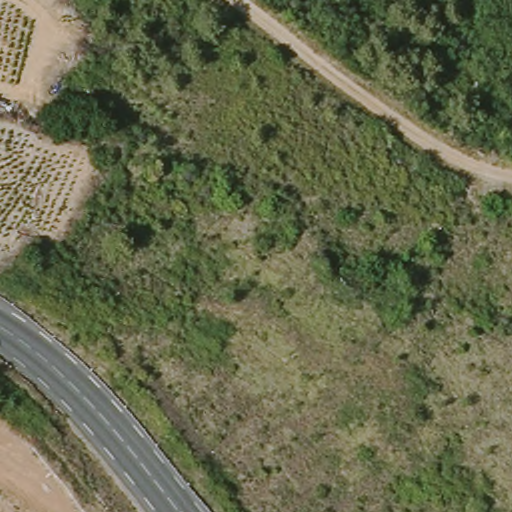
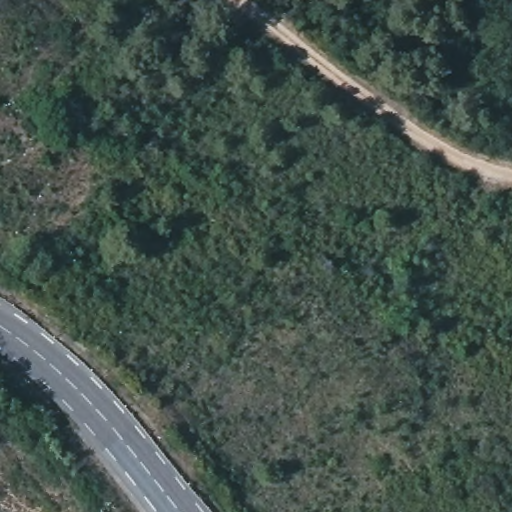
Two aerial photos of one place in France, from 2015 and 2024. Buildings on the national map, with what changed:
unchanged [(286,424),(305,432),(300,450),(280,442),(286,424)]

